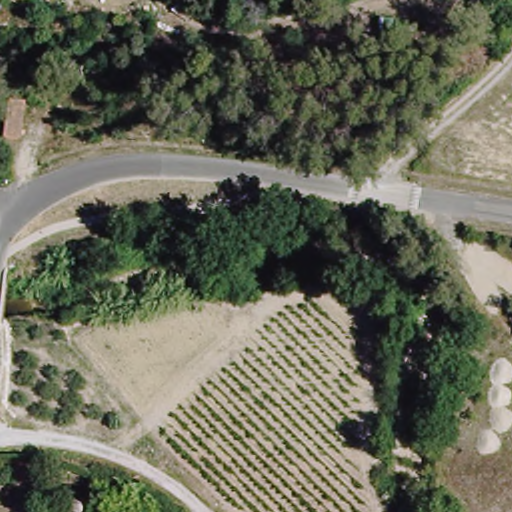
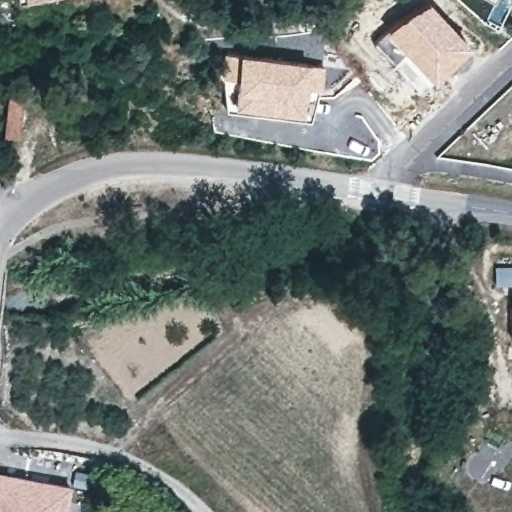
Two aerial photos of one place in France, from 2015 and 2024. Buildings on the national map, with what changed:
unchanged [(11,2),(11,0),(31,0),(11,2)]
new [(417,2),(420,5),(425,0),(429,0),(471,44),(433,80),(386,33),(417,2)]
new [(219,77),(220,52),(237,52),(310,60),(323,64),(320,89),(307,87),(303,114),(233,105),(235,79),(219,77)]
unchanged [(9,97),(29,97),(27,141),(7,140),(9,97)]
new [(86,487),(71,484),(74,469),(89,471),(86,487)]
new [(66,512),(0,512),(0,470),(71,484),(66,512)]

